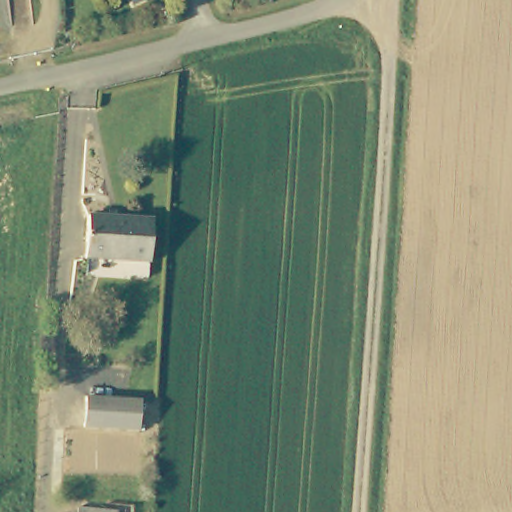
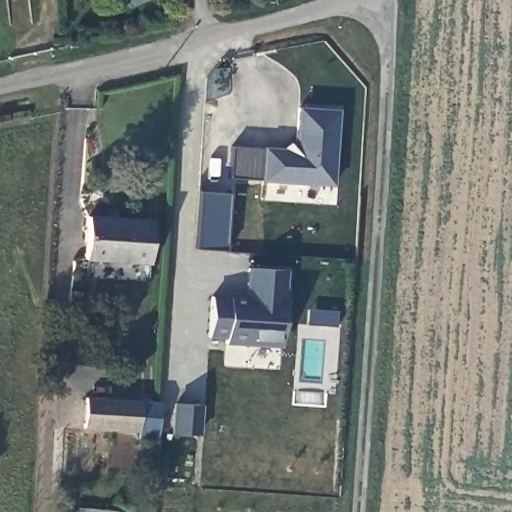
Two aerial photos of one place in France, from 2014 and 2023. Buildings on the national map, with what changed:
new [(339,185),(228,177),(230,144),(285,148),(296,135),(298,106),(341,109),(339,185)]
unchanged [(149,214),(147,258),(83,254),(84,213),(149,214)]
new [(283,348),(225,344),(225,339),(209,337),(212,293),(245,294),(247,266),(290,269),(283,348)]
unchanged [(136,428),(84,424),(86,394),(138,398),(136,428)]
unchanged [(97,512),(73,512),(73,511),(97,512)]

